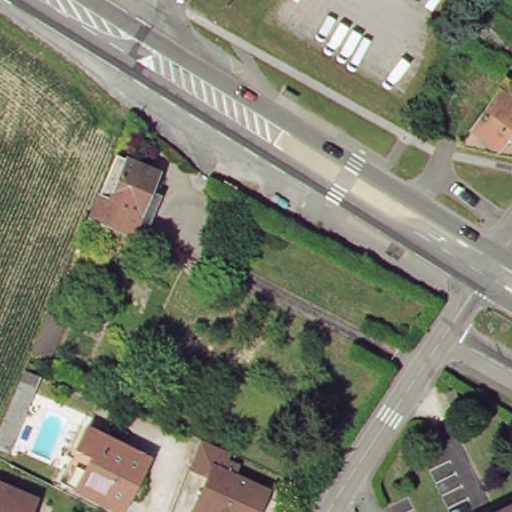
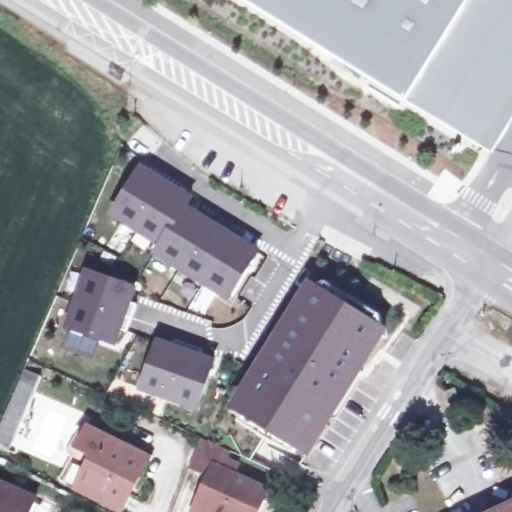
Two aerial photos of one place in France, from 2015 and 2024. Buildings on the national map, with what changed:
new [(492,153),(245,0),(512,0),(512,118),(492,153)]
demolished [(470,34),(485,8),(512,24),(512,58),(470,34)]
demolished [(466,138),(509,70),(512,73),(512,150),(466,138)]
demolished [(82,234),(101,191),(102,187),(115,192),(132,154),(162,167),(155,185),(169,191),(150,235),(106,216),(96,239),(82,234)]
new [(191,195),(185,205),(258,249),(227,301),(149,254),(156,245),(107,216),(139,160),(191,195)]
demolished [(239,215),(232,210),(229,216),(215,207),(218,201),(205,193),(212,180),(247,203),(239,215)]
new [(137,285),(117,346),(64,328),(84,266),(137,285)]
new [(387,332),(312,460),(226,408),(306,282),(387,332)]
demolished [(28,348),(54,290),(75,300),(49,354),(28,348)]
new [(215,355),(197,412),(135,390),(154,336),(215,355)]
unchanged [(0,413),(19,370),(35,377),(4,450),(0,449),(0,413)]
unchanged [(98,428),(159,458),(133,512),(127,512),(71,485),(98,428)]
unchanged [(256,512),(221,512),(214,508),(212,512),(200,512),(192,508),(210,470),(190,461),(202,433),(229,445),(225,454),(237,460),(233,469),(268,485),(256,512)]
unchanged [(29,512),(0,512),(0,471),(40,488),(29,512)]
unchanged [(512,503),(512,512),(492,512),(512,503)]

